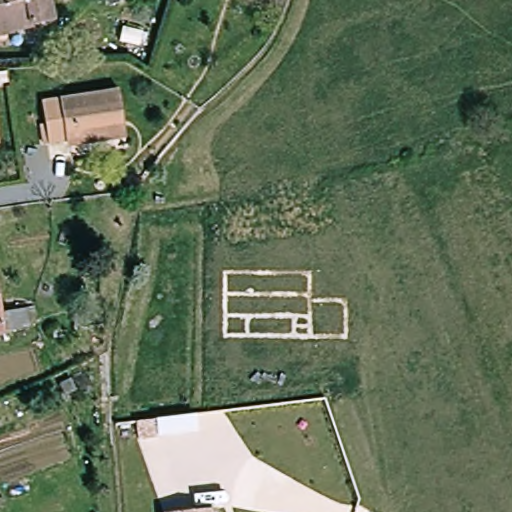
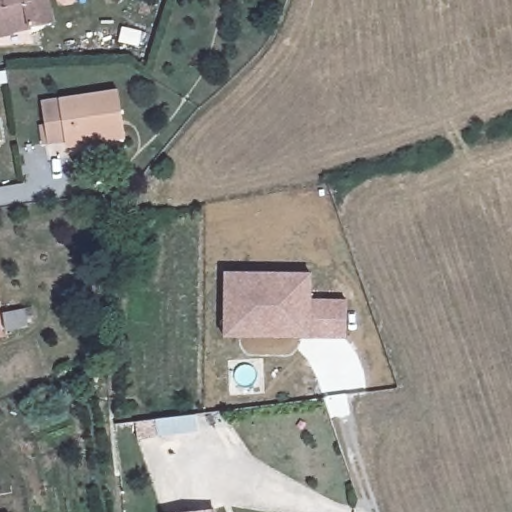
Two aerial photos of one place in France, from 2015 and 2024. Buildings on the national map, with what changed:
unchanged [(31,26),(31,29),(19,31),(18,34),(0,37),(0,0),(54,0),(59,20),(31,26)]
unchanged [(78,148),(77,140),(48,144),(41,99),(118,88),(124,134),(125,141),(78,148)]
unchanged [(0,145),(0,123),(4,144),(0,145)]
new [(226,272),(312,273),(312,300),(347,300),(348,338),(311,338),(224,336),(226,272)]
unchanged [(25,309),(28,327),(7,331),(5,312),(25,309)]
unchanged [(0,335),(0,331),(1,334),(0,335)]
unchanged [(69,379),(75,391),(64,396),(59,383),(69,379)]

